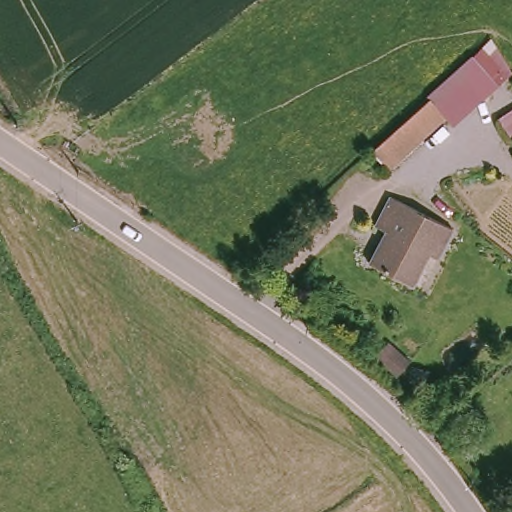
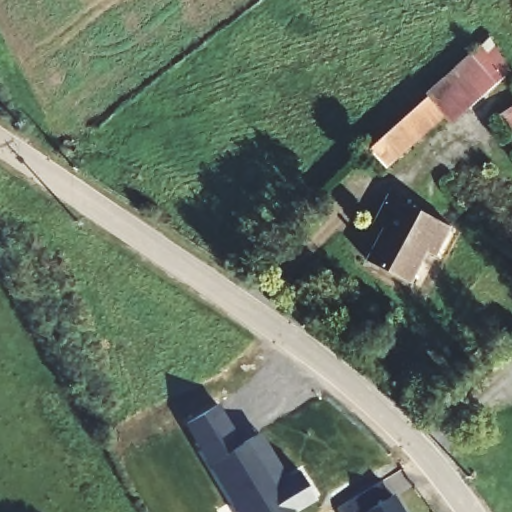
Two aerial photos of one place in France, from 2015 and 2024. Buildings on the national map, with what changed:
unchanged [(488,51),(509,72),(390,177),(375,158),(488,51)]
unchanged [(507,141),(495,118),(512,107),(512,137),(507,141)]
unchanged [(455,231),(438,259),(426,250),(406,280),(370,254),(384,234),(392,239),(397,230),(381,218),(402,191),(455,231)]
new [(262,432),(289,477),(299,470),(316,499),(293,512),(238,512),(185,424),(220,404),(243,443),(262,432)]
new [(382,481),(391,496),(393,495),(403,512),(340,512),(338,508),(382,481)]

